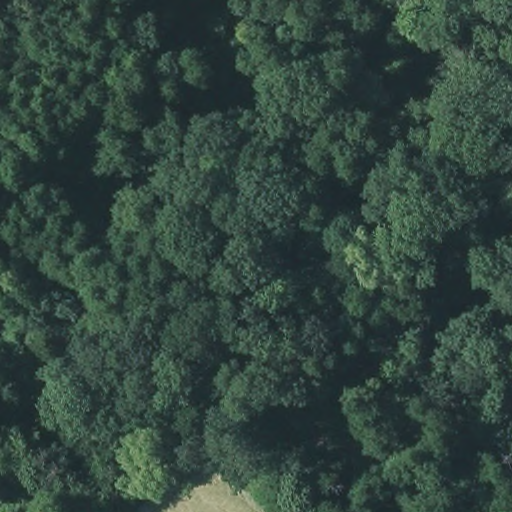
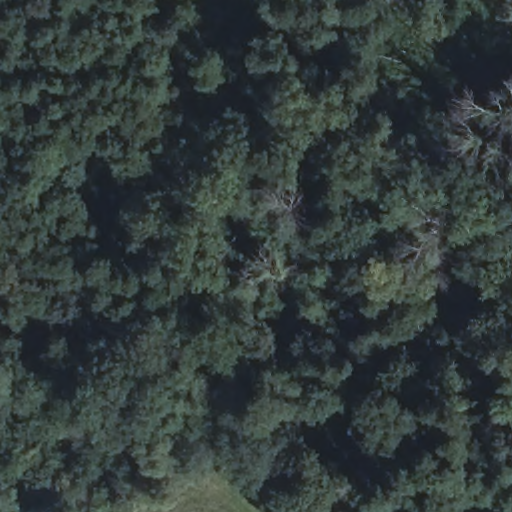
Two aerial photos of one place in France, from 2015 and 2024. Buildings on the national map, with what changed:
unchanged [(60,428),(70,439),(52,455),(42,444),(60,428)]

